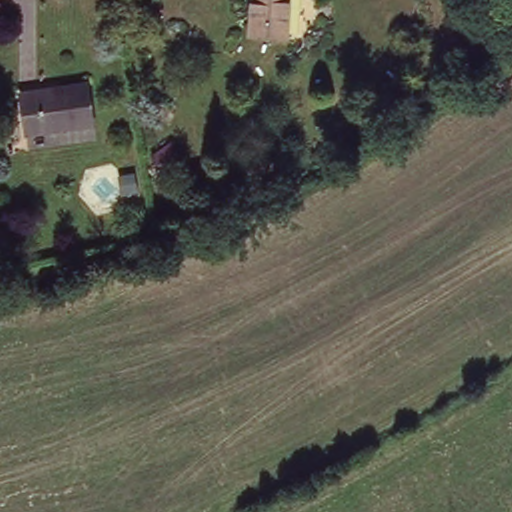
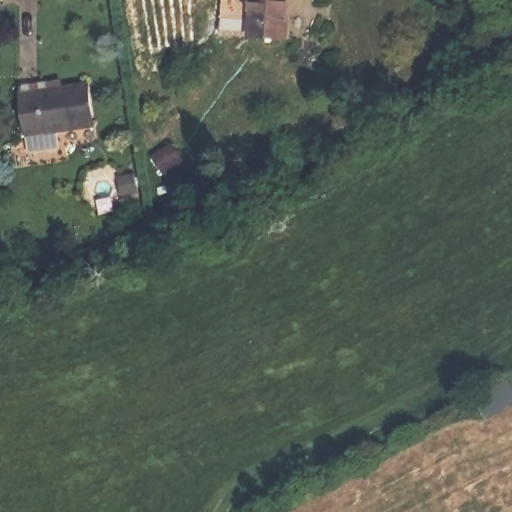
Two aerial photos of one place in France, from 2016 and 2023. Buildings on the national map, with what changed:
unchanged [(248,34),(253,0),(291,0),(287,35),(248,34)]
unchanged [(92,85),(99,122),(32,138),(24,101),(92,85)]

